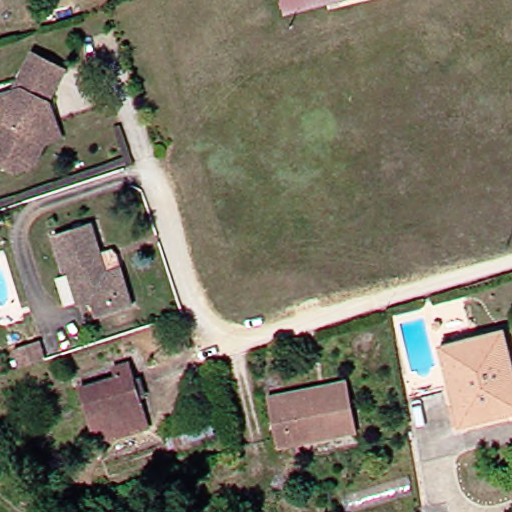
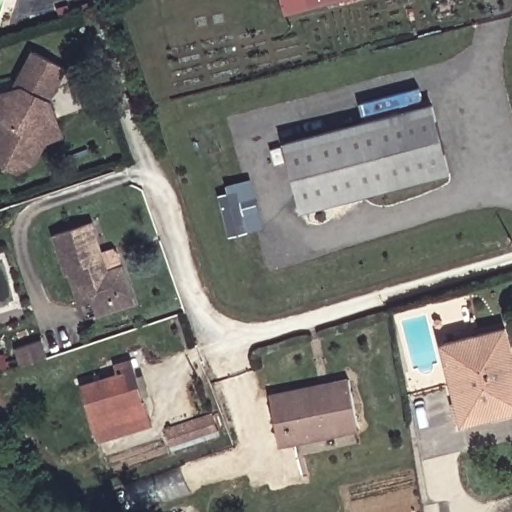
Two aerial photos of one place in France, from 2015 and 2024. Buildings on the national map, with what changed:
unchanged [(286,15),(282,0),(345,0),(286,15)]
unchanged [(31,164),(19,157),(12,171),(0,165),(0,93),(18,87),(16,78),(30,52),(61,69),(44,101),(46,101),(50,115),(57,137),(41,143),(31,164)]
new [(304,211),(286,141),(435,103),(452,173),(304,211)]
unchanged [(65,271),(61,272),(49,235),(88,222),(98,252),(110,249),(114,254),(130,303),(92,315),(83,285),(71,288),(65,271)]
unchanged [(462,425),(442,344),(506,329),(512,353),(512,413),(462,425)]
unchanged [(43,341),(49,358),(22,367),(17,350),(43,341)]
unchanged [(116,423),(111,408),(87,416),(77,385),(112,374),(110,365),(126,360),(142,415),(116,423)]
unchanged [(280,445),(270,395),(285,391),(349,379),(350,385),(357,422),(359,429),(295,441),(280,445)]
unchanged [(110,450),(106,436),(94,440),(87,416),(111,408),(116,423),(142,415),(146,425),(155,436),(110,450)]
unchanged [(207,413),(211,427),(167,442),(162,428),(207,413)]
unchanged [(191,512),(180,512),(185,507),(191,512)]

